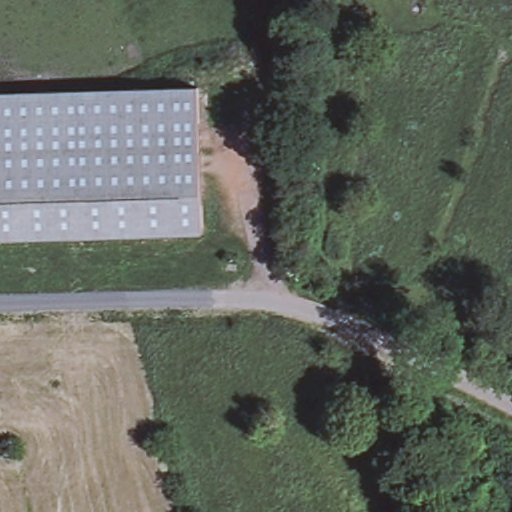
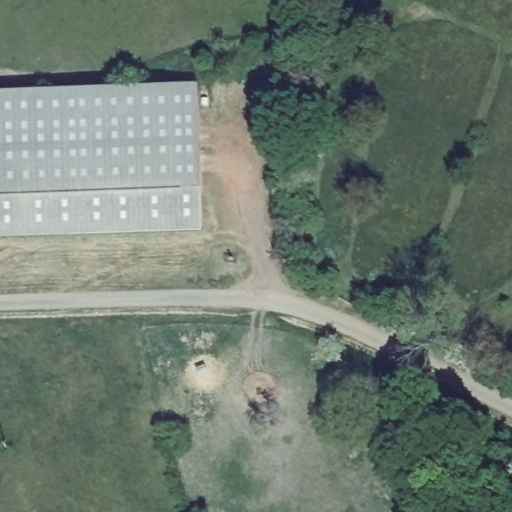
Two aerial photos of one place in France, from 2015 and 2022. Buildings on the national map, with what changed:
unchanged [(197,84),(202,225),(138,229),(133,86),(197,84)]
unchanged [(138,229),(0,232),(0,91),(133,86),(138,229)]

